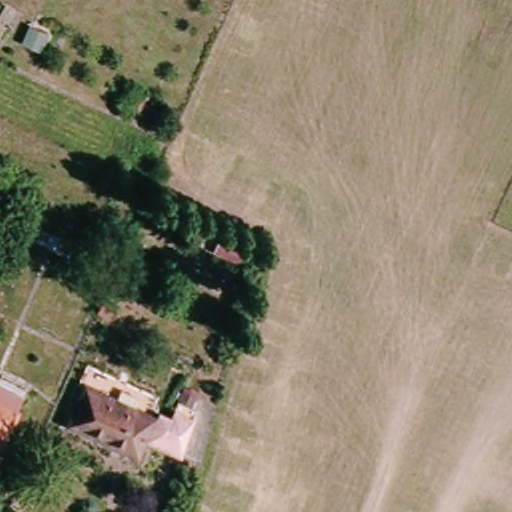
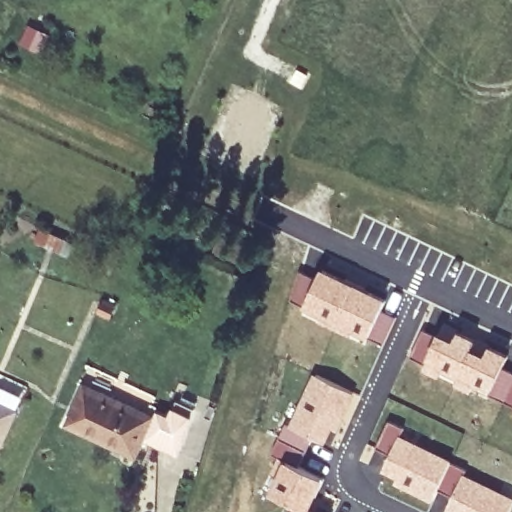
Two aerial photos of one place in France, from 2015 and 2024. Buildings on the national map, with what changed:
unchanged [(63,254),(37,242),(42,232),(68,243),(63,254)]
unchanged [(239,264),(216,254),(223,237),(246,247),(239,264)]
new [(299,271),(316,278),(322,266),(388,297),(383,309),(397,316),(384,343),(355,329),(352,332),(289,297),(299,271)]
new [(476,383),(473,390),(422,367),(424,362),(409,355),(422,328),(437,335),(441,327),(452,333),(457,325),(479,337),(475,345),(486,350),(491,342),(512,352),(512,353),(505,366),(512,369),(512,402),(491,392),(476,383)]
new [(270,454),(284,425),(313,372),(361,395),(335,450),(311,440),(299,465),(326,478),(311,510),(297,505),(266,490),(281,459),(270,454)]
unchanged [(186,457),(170,450),(148,440),(141,455),(68,420),(83,386),(157,420),(160,412),(182,422),(190,426),(186,457)]
unchanged [(0,446),(0,401),(24,412),(7,449),(0,446)]
new [(388,420),(403,427),(400,432),(466,467),(465,471),(452,495),(440,488),(433,501),(380,472),(389,453),(374,445),(388,420)]
new [(512,495),(512,510),(511,512),(490,512),(452,495),(465,471),(512,495)]
new [(490,512),(444,512),(452,495),(490,512)]
new [(311,510),(317,512),(294,512),(297,505),(311,510)]

